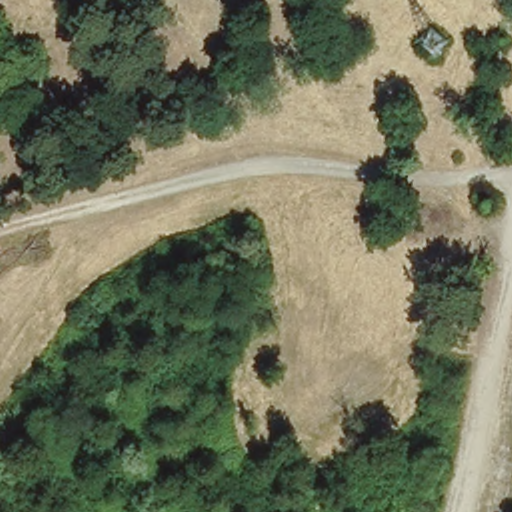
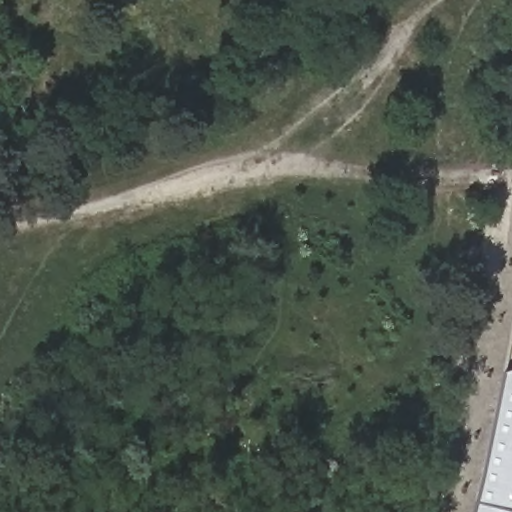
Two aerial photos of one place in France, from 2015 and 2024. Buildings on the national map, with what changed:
new [(503,370),(512,367),(512,512),(473,512),(476,500),(503,370)]

